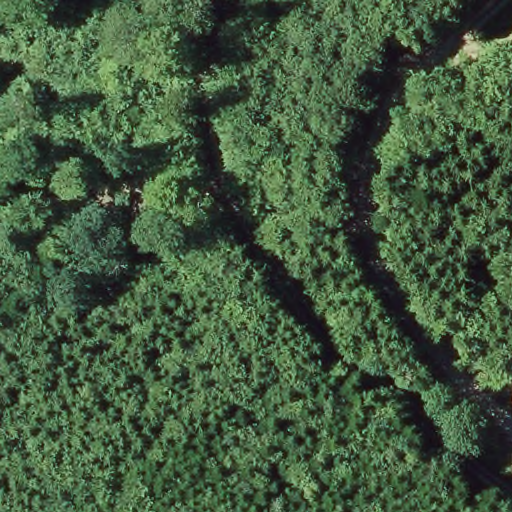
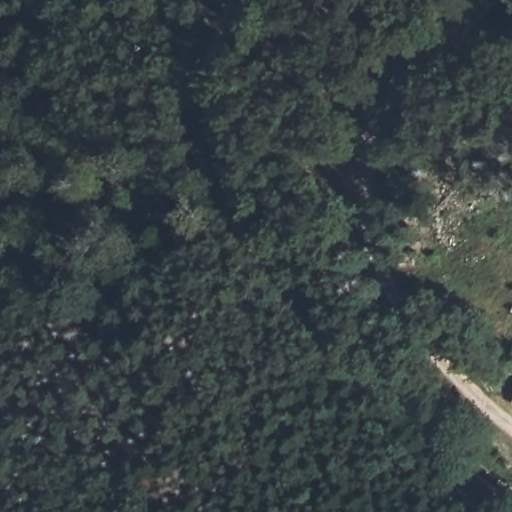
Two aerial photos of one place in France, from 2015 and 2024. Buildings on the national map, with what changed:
unchanged [(509,407),(512,403),(512,409),(509,407)]

